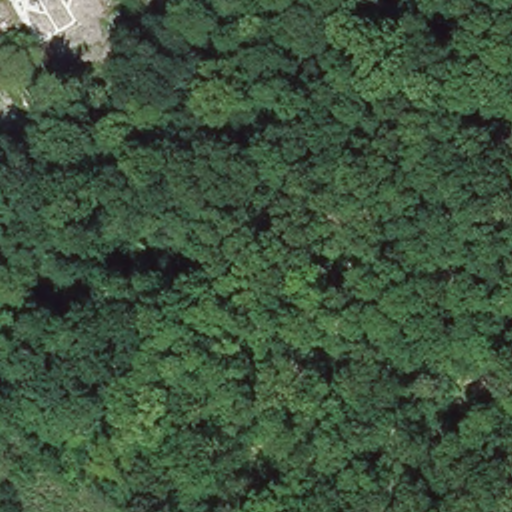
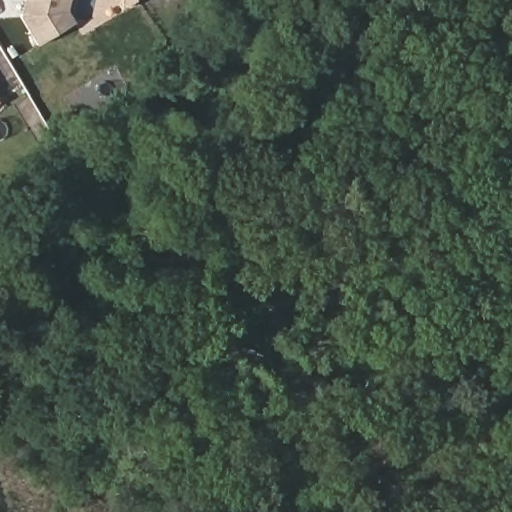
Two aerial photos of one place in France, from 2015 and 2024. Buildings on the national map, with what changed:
new [(75,22),(38,46),(20,17),(25,0),(69,0),(67,7),(75,22)]

